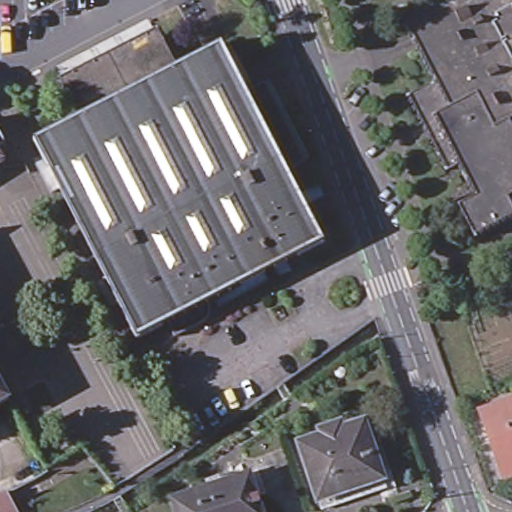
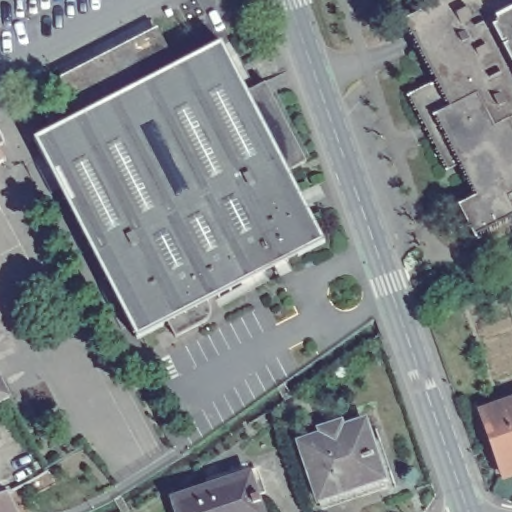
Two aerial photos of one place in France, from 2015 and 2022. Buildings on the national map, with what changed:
unchanged [(415,67),(393,26),(437,4),(435,0),(512,0),(512,23),(415,67)]
unchanged [(425,87),(415,67),(512,23),(512,100),(421,141),(400,100),(425,87)]
unchanged [(76,81),(80,89),(148,53),(145,45),(155,39),(160,48),(160,47),(175,74),(83,121),(69,94),(70,94),(66,86),(76,81)]
unchanged [(38,145),(83,121),(175,74),(221,51),(250,111),(314,234),(320,244),(231,289),(137,338),(135,334),(38,145)]
unchanged [(471,195),(456,168),(440,176),(421,141),(512,100),(512,118),(511,119),(512,120),(512,177),(471,195)]
unchanged [(0,167),(0,156),(5,164),(0,167)]
unchanged [(504,196),(512,214),(512,219),(471,240),(455,209),(472,199),(471,195),(512,177),(512,192),(504,196)]
unchanged [(0,408),(0,387),(8,403),(0,408)]
unchanged [(512,400),(512,473),(503,476),(480,412),(512,400)]
unchanged [(384,487),(359,497),(355,489),(315,504),(292,449),(315,439),(313,434),(332,427),(335,431),(358,421),(384,487)]
unchanged [(256,512),(177,512),(175,506),(246,482),(256,512)]
unchanged [(0,494),(1,494),(11,512),(0,512),(0,494)]

